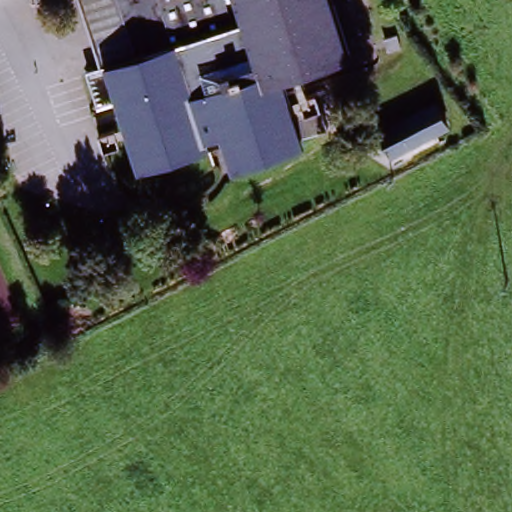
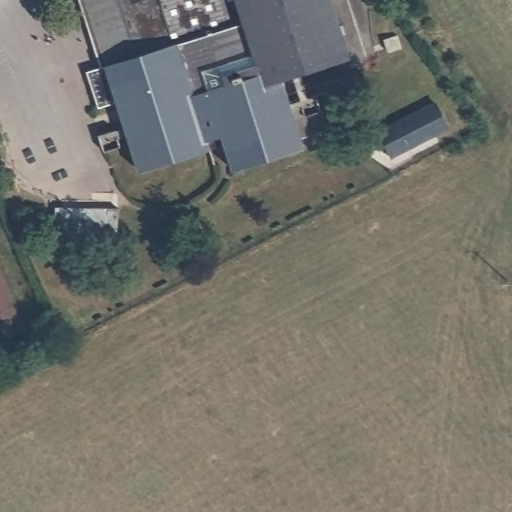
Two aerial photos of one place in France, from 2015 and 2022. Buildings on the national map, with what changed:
unchanged [(265,86),(288,156),(219,177),(211,150),(124,178),(89,72),(120,62),(100,0),(298,0),(319,70),(265,86)]
unchanged [(370,64),(366,50),(379,45),(384,59),(370,64)]
unchanged [(357,127),(433,87),(455,125),(378,162),(357,127)]
unchanged [(306,117),(291,121),(287,106),(301,102),(306,117)]
unchanged [(81,144),(96,139),(103,154),(87,160),(81,144)]

